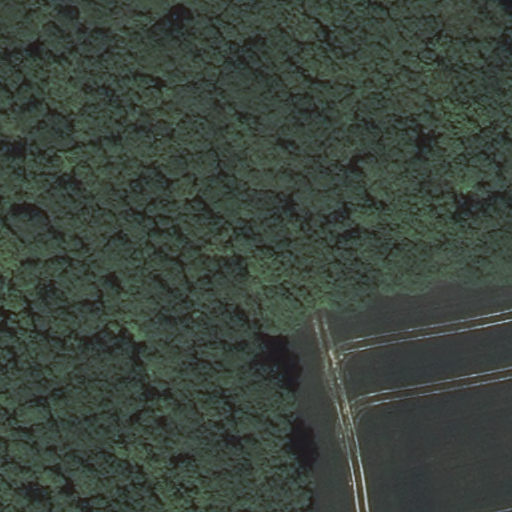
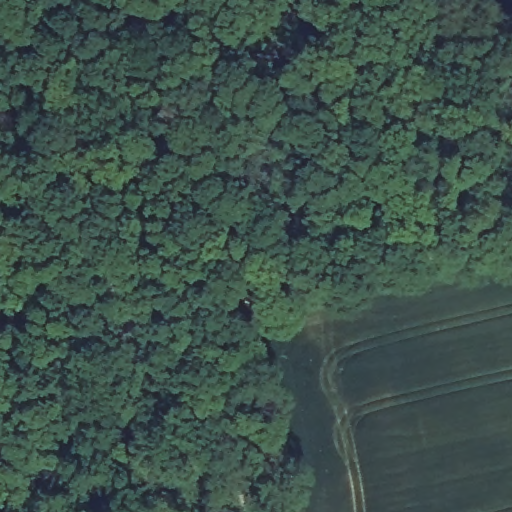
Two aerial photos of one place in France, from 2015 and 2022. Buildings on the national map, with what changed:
unchanged [(104,173),(78,177),(69,138),(94,133),(104,173)]

